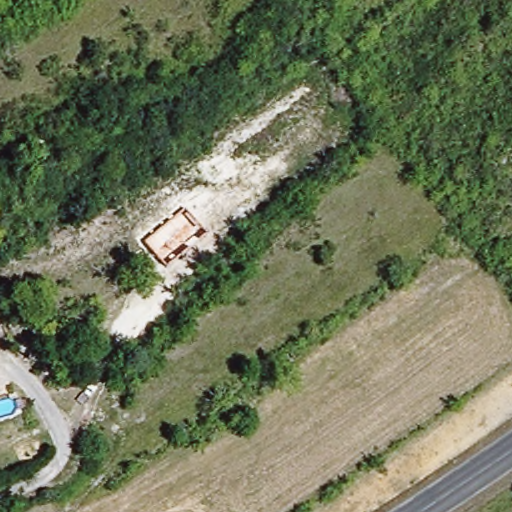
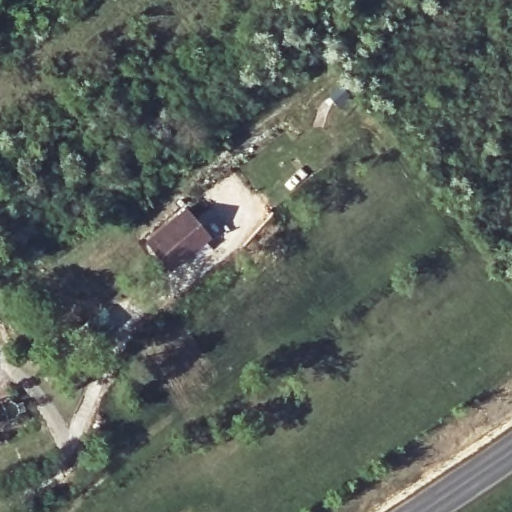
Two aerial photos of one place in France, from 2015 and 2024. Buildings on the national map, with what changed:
new [(168,269),(146,241),(186,207),(209,235),(168,269)]

